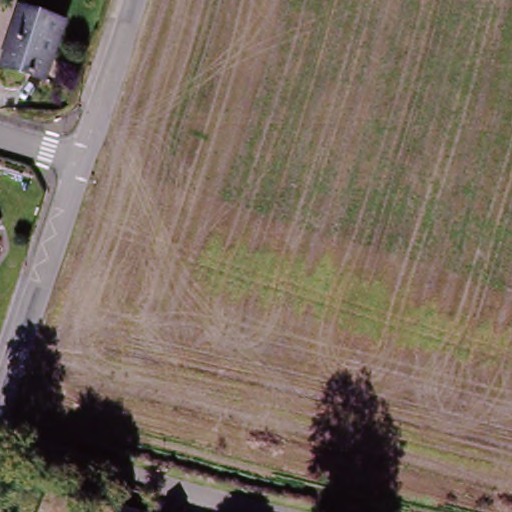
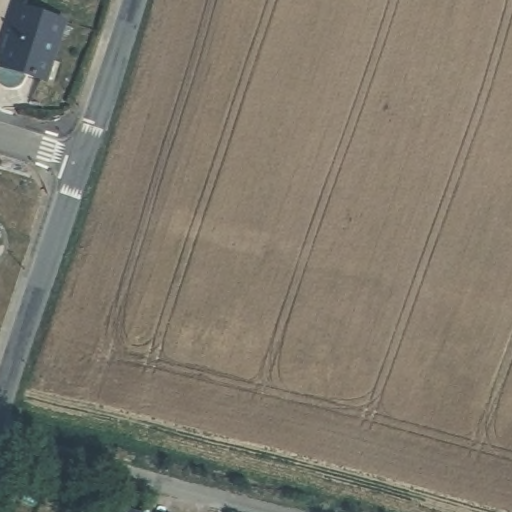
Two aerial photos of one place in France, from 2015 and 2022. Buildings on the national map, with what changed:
unchanged [(23,9),(65,21),(48,81),(6,71),(23,9)]
unchanged [(117,512),(114,512),(114,511),(117,512)]

